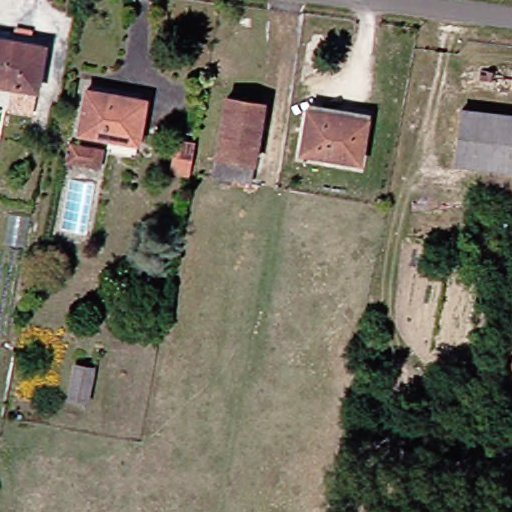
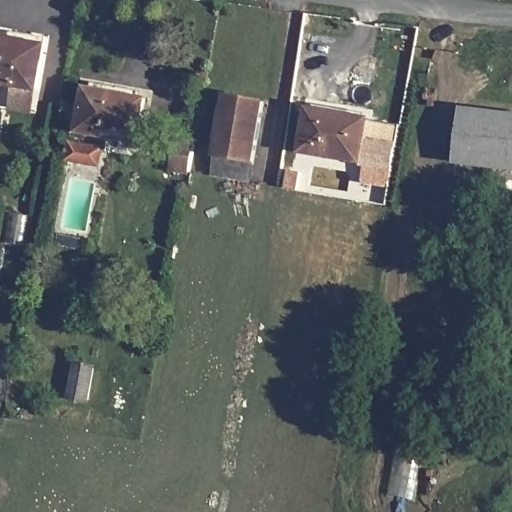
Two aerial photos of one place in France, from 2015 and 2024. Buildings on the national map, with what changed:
unchanged [(0,88),(0,35),(40,42),(30,94),(0,88)]
unchanged [(110,140),(77,135),(85,90),(141,100),(134,144),(131,143),(129,162),(107,159),(110,140)]
unchanged [(257,105),(244,179),(206,172),(222,99),(257,105)]
unchanged [(512,115),(512,169),(456,165),(461,110),(512,115)]
unchanged [(361,125),(355,165),(293,155),(301,114),(361,125)]
new [(365,166),(361,165),(369,120),(399,126),(390,187),(364,182),(365,166)]
unchanged [(195,135),(192,155),(191,162),(174,160),(178,132),(195,135)]
unchanged [(91,144),(89,160),(58,154),(60,139),(91,144)]
unchanged [(92,387),(79,385),(83,365),(96,367),(92,387)]

